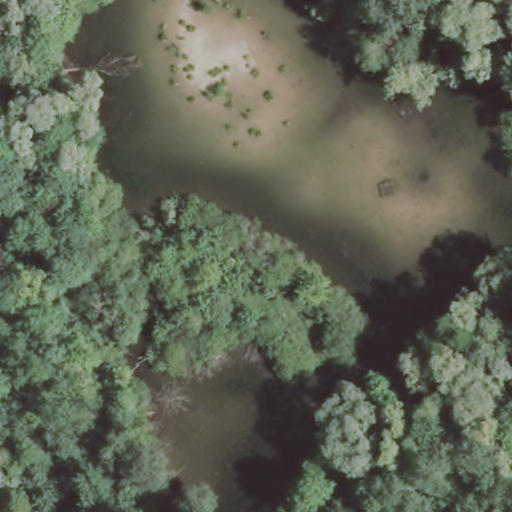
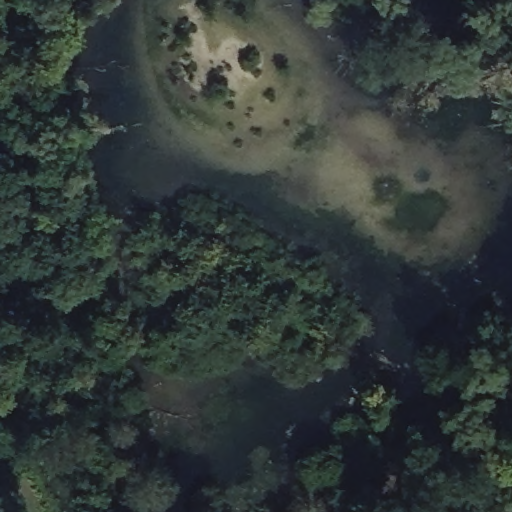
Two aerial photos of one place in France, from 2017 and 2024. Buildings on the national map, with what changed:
unchanged [(322,293),(311,302),(301,290),(305,287),(300,280),(306,275),(322,293)]

